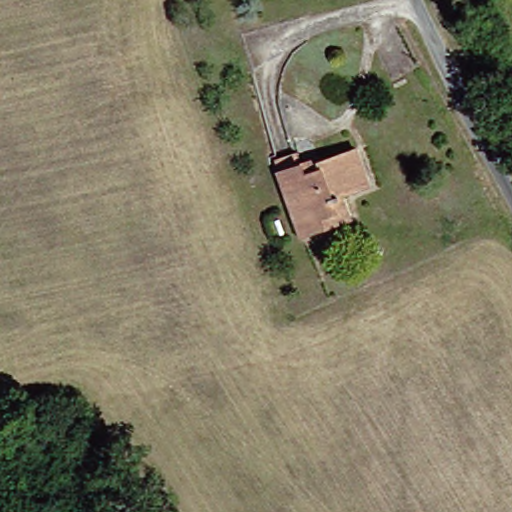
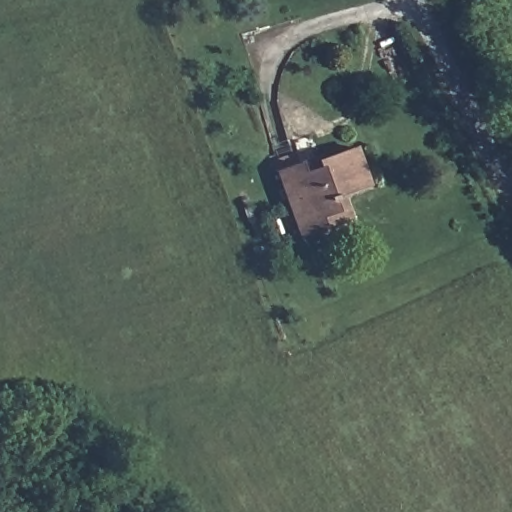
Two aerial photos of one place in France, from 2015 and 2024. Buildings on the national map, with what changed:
unchanged [(321,232),(298,242),(268,170),(290,160),(294,170),(310,164),(311,167),(348,151),(363,187),(336,199),(346,220),(321,232)]

